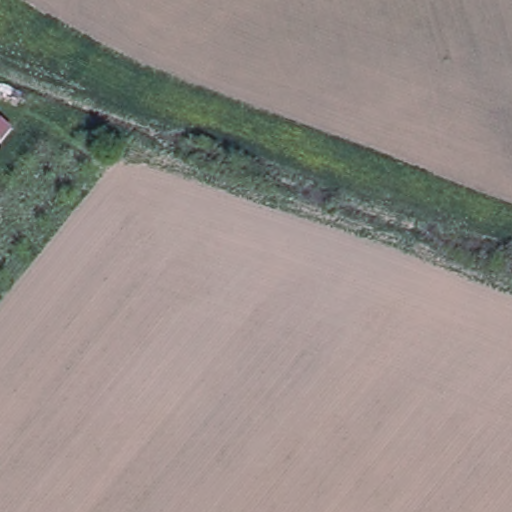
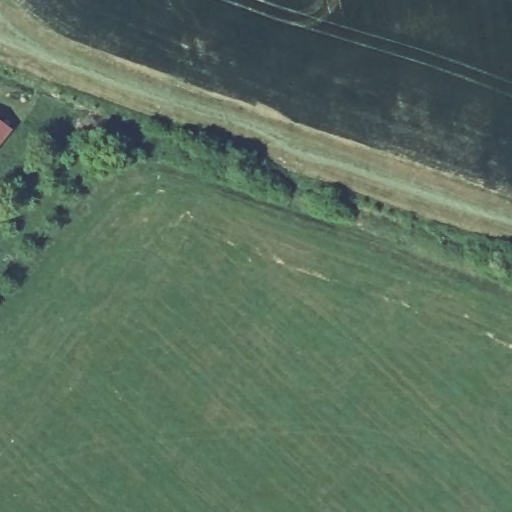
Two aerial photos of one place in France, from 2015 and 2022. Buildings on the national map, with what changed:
unchanged [(0,143),(0,118),(12,129),(0,143)]

